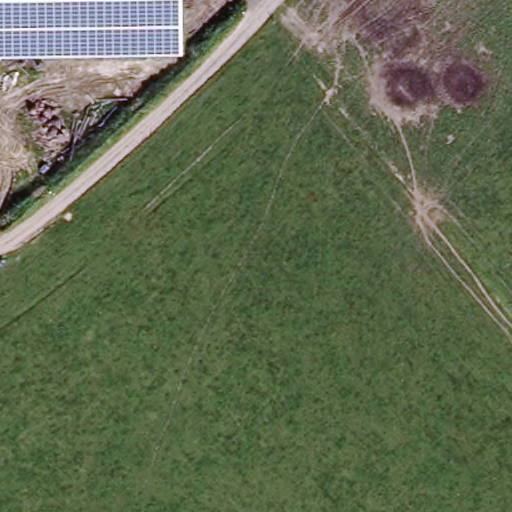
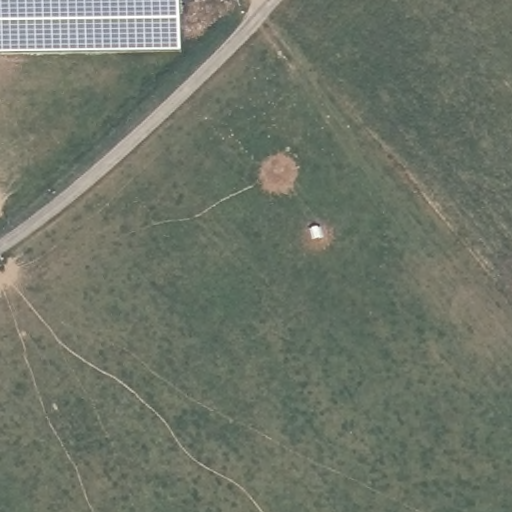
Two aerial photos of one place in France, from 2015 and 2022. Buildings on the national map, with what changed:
unchanged [(0,56),(0,0),(26,0),(26,55),(0,56)]
unchanged [(180,54),(26,55),(26,0),(179,0),(180,54)]

